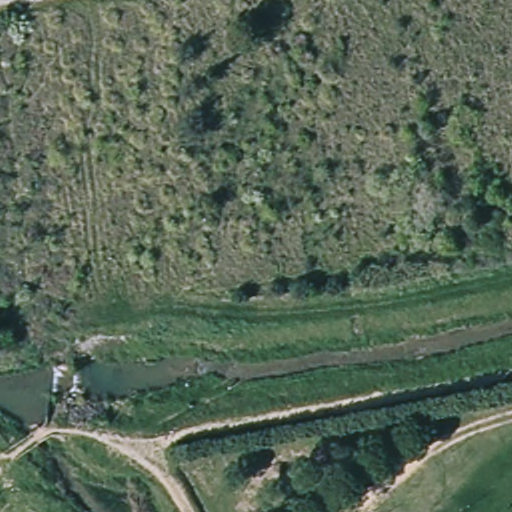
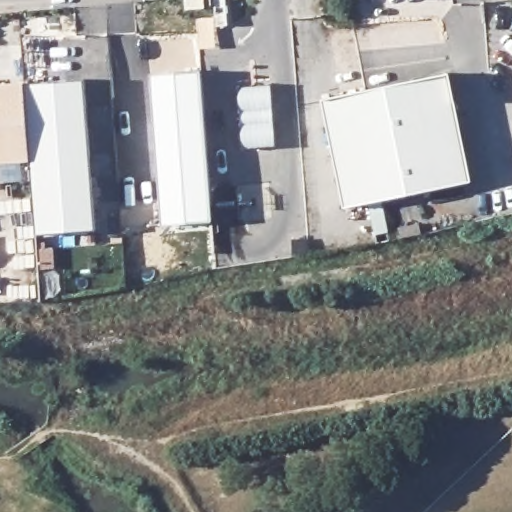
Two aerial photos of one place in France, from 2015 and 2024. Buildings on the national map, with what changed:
new [(200,70),(211,221),(161,225),(149,73),(200,70)]
new [(28,172),(0,174),(0,77),(20,75),(28,172)]
new [(453,75),(475,184),(347,210),(325,101),(453,75)]
new [(79,80),(92,231),(31,236),(28,172),(21,84),(79,80)]
new [(270,83),(275,146),(240,149),(236,86),(270,83)]
new [(51,247),(52,267),(38,268),(36,248),(51,247)]

